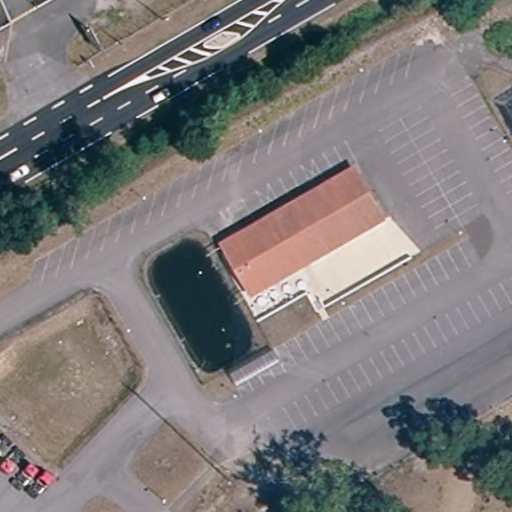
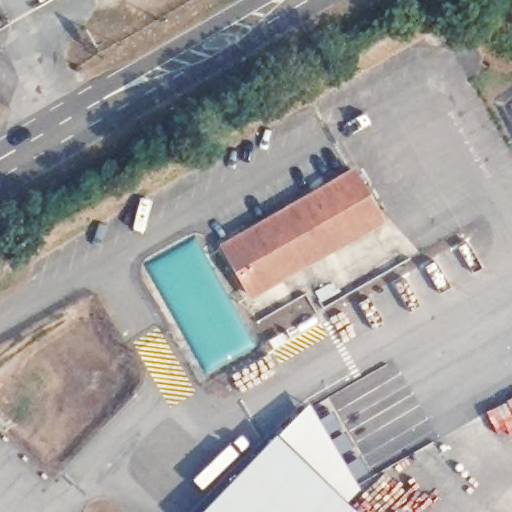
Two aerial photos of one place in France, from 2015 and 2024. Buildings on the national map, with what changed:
unchanged [(380,225),(248,300),(222,250),(351,176),(380,225)]
new [(360,488),(348,501),(277,435),(309,404),(360,488)]
new [(359,512),(204,512),(277,435),(359,512)]

